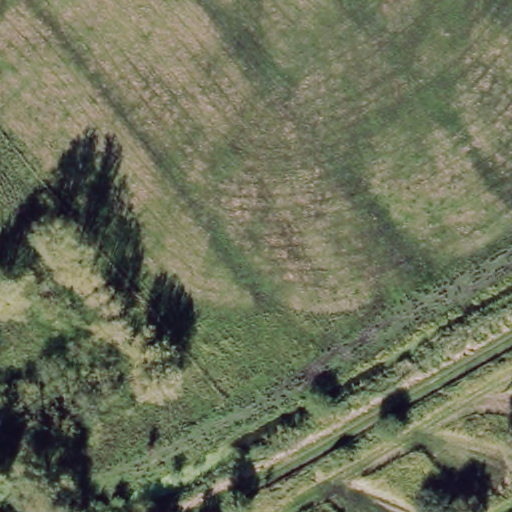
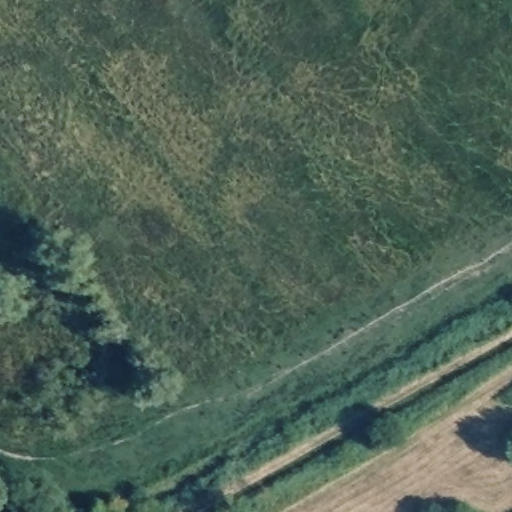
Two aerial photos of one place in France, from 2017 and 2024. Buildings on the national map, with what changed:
[]

